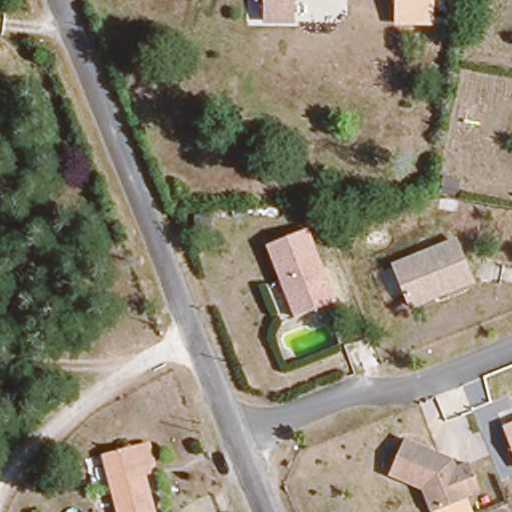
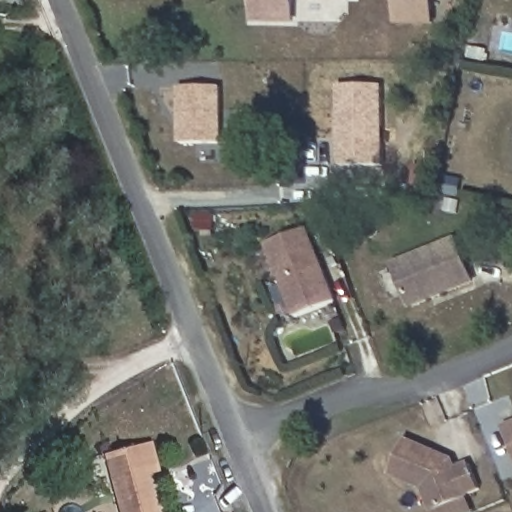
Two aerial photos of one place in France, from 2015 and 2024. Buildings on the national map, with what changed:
unchanged [(271,19),(271,0),(296,0),(297,19),(271,19)]
new [(402,21),(401,0),(436,0),(437,21),(402,21)]
new [(337,131),(341,131),(340,86),(382,86),(382,166),(340,167),(337,131)]
new [(179,89),(222,89),(222,144),(179,144),(179,89)]
unchanged [(340,301),(300,318),(270,246),(310,229),(340,301)]
unchanged [(472,280),(412,306),(395,266),(455,240),(472,280)]
unchanged [(512,425),(512,441),(507,428),(512,425)]
unchanged [(103,452),(152,437),(167,496),(159,498),(162,512),(119,512),(103,452)]
unchanged [(481,490),(432,509),(424,488),(390,475),(406,438),(455,459),(458,465),(468,460),(481,490)]

